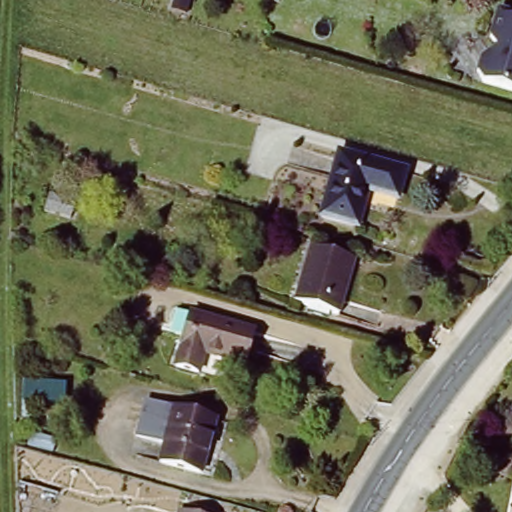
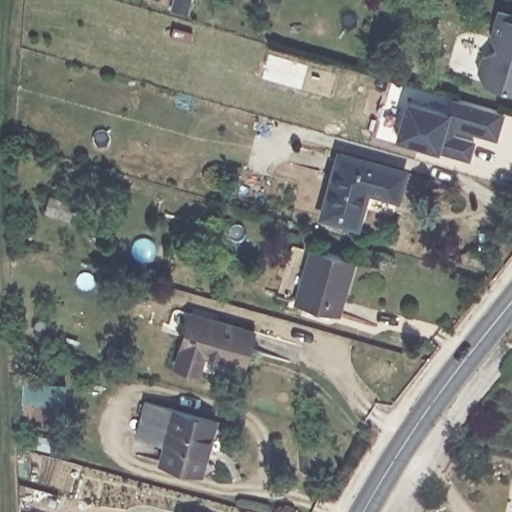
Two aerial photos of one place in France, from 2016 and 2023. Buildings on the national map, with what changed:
unchanged [(512,17),(512,94),(508,96),(477,87),(474,77),(481,57),(490,55),(490,34),(497,13),(512,17)]
new [(496,140),(453,127),(452,136),(474,141),(469,160),(439,151),(395,139),(405,98),(445,109),(451,96),(504,112),(496,140)]
unchanged [(401,170),(395,195),(363,186),(353,222),(321,214),(338,152),(401,170)]
unchanged [(46,197),(70,204),(66,219),(42,212),(46,197)]
unchanged [(300,276),(308,246),(350,257),(342,287),(300,276)]
unchanged [(342,287),(335,312),(293,302),(300,276),(342,287)]
unchanged [(253,325),(244,359),(206,348),(201,367),(177,361),(192,308),(253,325)]
unchanged [(220,416),(205,468),(162,457),(167,440),(140,432),(150,397),(220,416)]
unchanged [(179,512),(180,508),(192,512),(179,512)]

